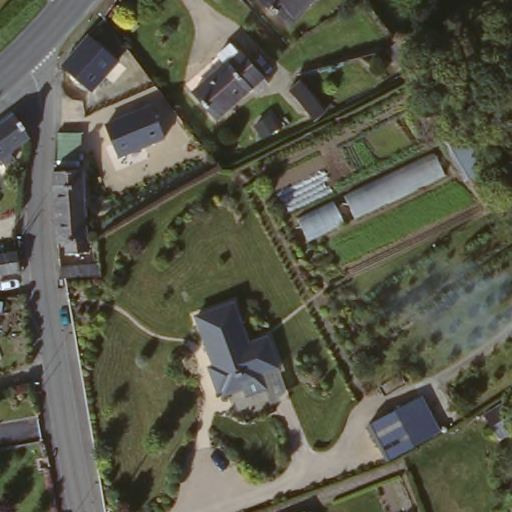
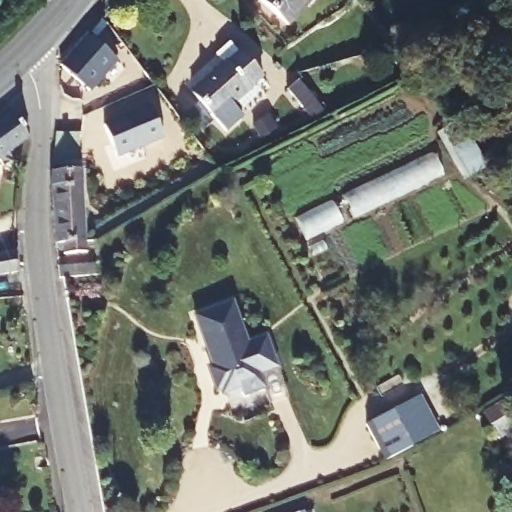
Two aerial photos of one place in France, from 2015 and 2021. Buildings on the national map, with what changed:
unchanged [(322,0),(284,36),(252,5),(257,0),(322,0)]
unchanged [(57,77),(74,57),(81,52),(89,47),(103,61),(74,92),(57,77)]
unchanged [(213,121),(190,90),(228,62),(231,67),(246,59),(266,85),(213,121)]
unchanged [(306,123),(297,112),(311,103),(321,115),(306,123)]
unchanged [(118,156),(105,125),(151,107),(163,138),(118,156)]
unchanged [(0,164),(0,128),(9,121),(25,147),(0,164)]
unchanged [(454,130),(479,175),(458,187),(432,140),(454,129),(454,130)]
unchanged [(73,169),(48,167),(49,139),(73,141),(73,169)]
unchanged [(312,244),(298,217),(433,153),(448,179),(312,244)]
unchanged [(78,248),(68,249),(68,258),(53,258),(49,258),(45,182),(48,182),(76,180),(79,242),(78,248)]
unchanged [(8,275),(0,276),(0,254),(4,253),(8,275)]
unchanged [(196,322),(233,310),(246,347),(264,341),(274,371),(256,377),(261,395),(240,403),(236,393),(221,398),(219,395),(213,393),(204,369),(208,362),(194,322),(196,322)]
unchanged [(417,402),(434,436),(408,449),(393,415),(417,402)]
unchanged [(381,462),(366,429),(393,415),(408,449),(381,462)]

